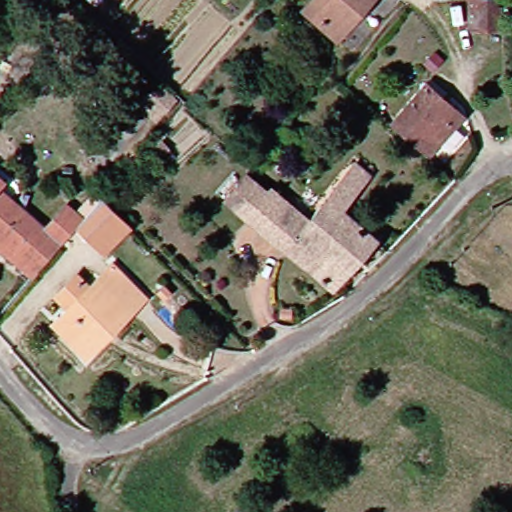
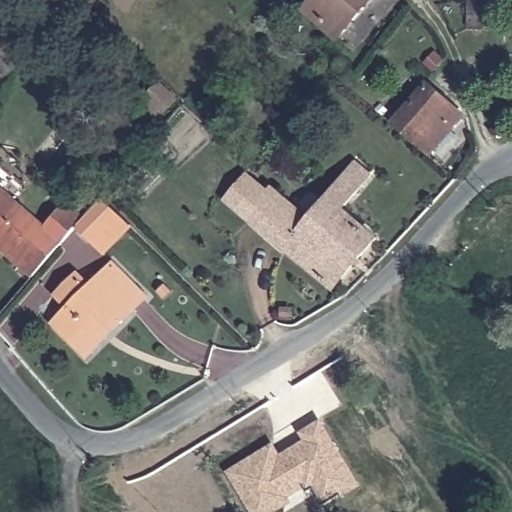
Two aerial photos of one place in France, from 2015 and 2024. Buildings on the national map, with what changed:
unchanged [(311,24),(294,9),(301,0),(361,0),(333,33),(328,38),(311,24)]
unchanged [(469,28),(470,6),(470,0),(498,0),(498,6),(497,28),(469,28)]
unchanged [(417,78),(453,109),(418,150),(381,118),(417,78)]
unchanged [(346,167),(360,181),(332,213),(366,243),(324,292),(218,204),(237,181),(261,200),(265,196),(282,210),(299,225),(346,167)]
unchanged [(0,181),(0,180),(1,180),(0,181)]
unchanged [(31,278),(29,276),(8,258),(0,252),(0,193),(46,233),(66,210),(80,222),(74,229),(60,246),(67,252),(40,284),(31,278)]
unchanged [(74,229),(80,222),(101,198),(120,217),(129,227),(101,255),(91,245),(74,229)]
unchanged [(51,324),(55,320),(67,308),(55,296),(74,276),(87,288),(111,264),(145,298),(119,325),(85,359),(51,324)]
new [(251,512),(227,471),(274,443),(281,453),(306,437),(302,431),(322,419),(360,484),(321,507),(313,492),(279,512),(251,512)]

